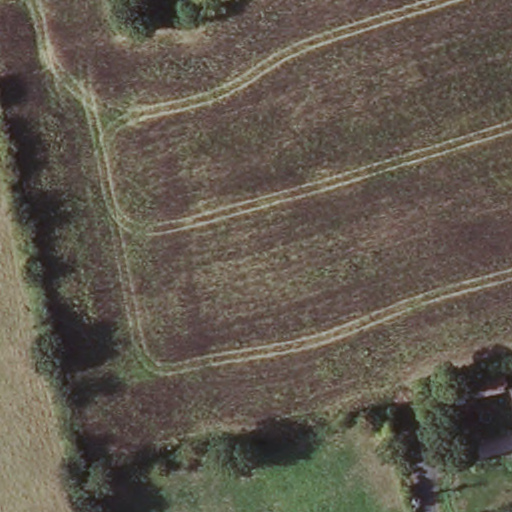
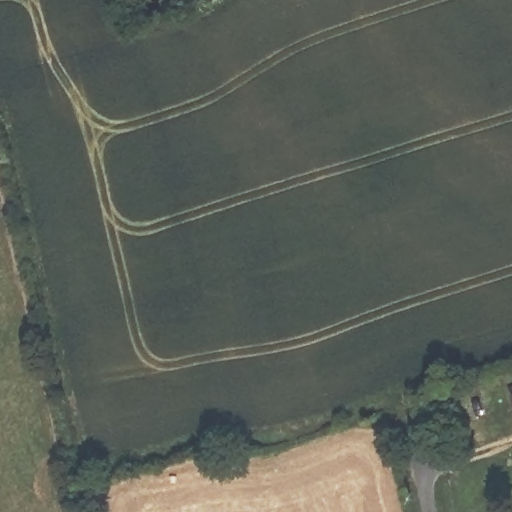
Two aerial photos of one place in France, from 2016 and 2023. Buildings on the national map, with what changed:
unchanged [(464,398),(496,392),(501,408),(468,416),(464,398)]
unchanged [(511,400),(512,400),(512,406),(511,400)]

